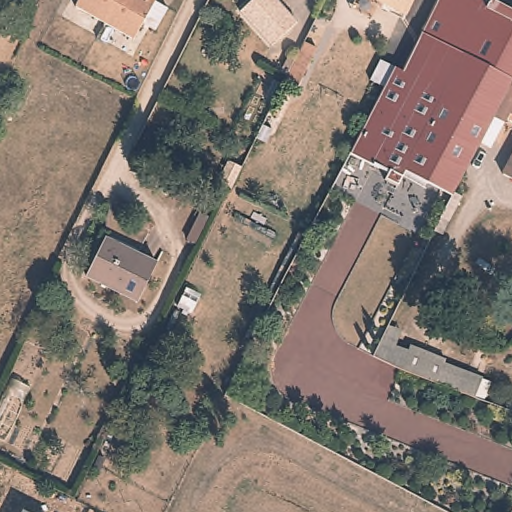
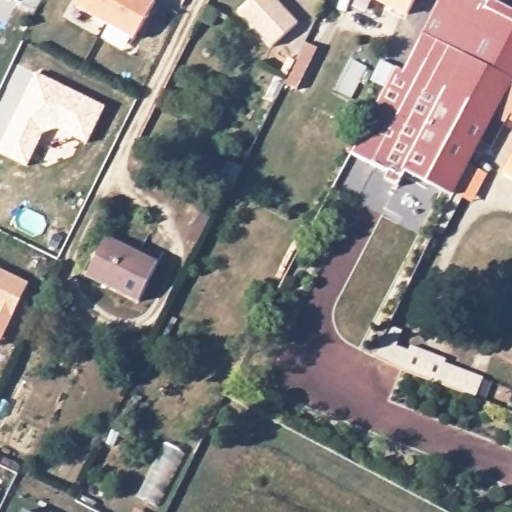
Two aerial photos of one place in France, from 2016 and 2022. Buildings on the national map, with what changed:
unchanged [(77,8),(81,0),(156,0),(136,39),(77,8)]
unchanged [(272,45),(240,11),(252,0),(277,0),(297,22),(272,45)]
unchanged [(409,71),(443,0),(485,0),(492,4),(495,0),(512,10),(512,84),(510,83),(478,145),(452,195),(405,173),(402,180),(355,158),(389,86),(400,91),(409,71)]
unchanged [(381,0),(410,0),(403,13),(381,0)]
new [(35,73),(105,106),(89,143),(57,129),(41,135),(27,168),(0,155),(0,144),(35,73)]
unchanged [(491,153),(478,145),(510,83),(512,84),(512,117),(510,115),(491,153)]
unchanged [(220,160),(231,136),(245,143),(233,166),(220,160)]
unchanged [(512,157),(512,183),(502,178),(512,157)]
unchanged [(105,240),(157,265),(139,303),(87,277),(105,240)]
unchanged [(0,342),(0,269),(29,283),(0,342)]
unchanged [(383,335),(424,344),(422,351),(460,360),(455,385),(375,362),(383,335)]

